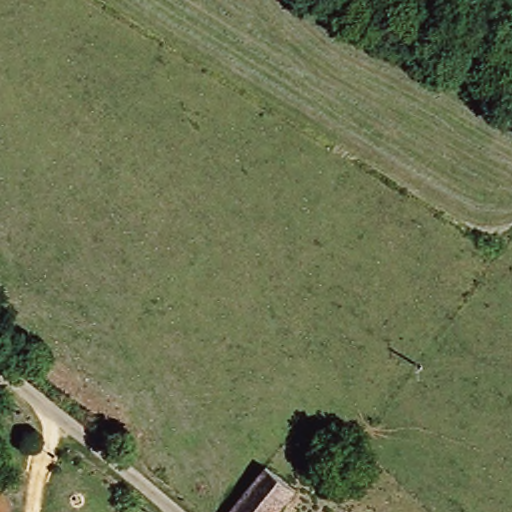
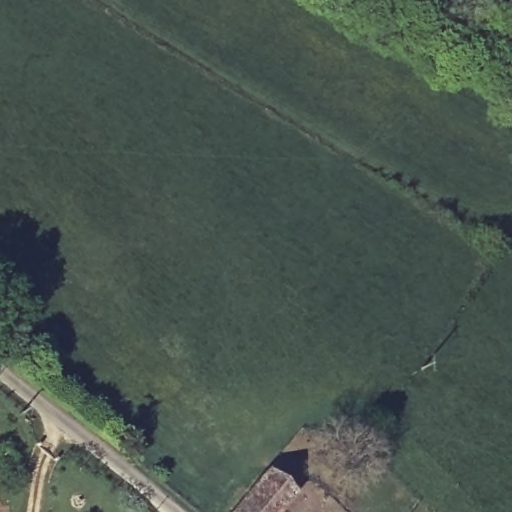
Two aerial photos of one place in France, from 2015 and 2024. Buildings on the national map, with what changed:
unchanged [(294,496),(281,512),(234,512),(269,470),(294,496)]

